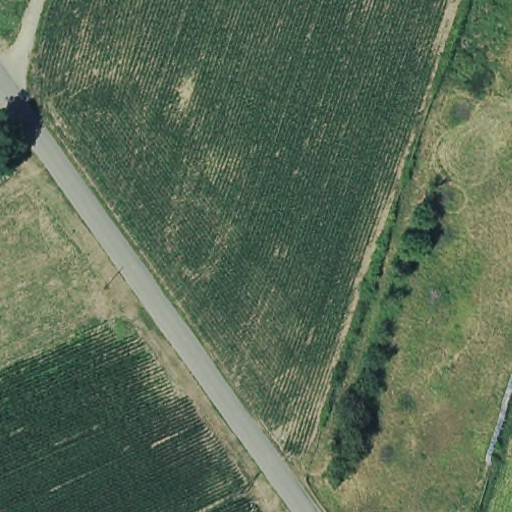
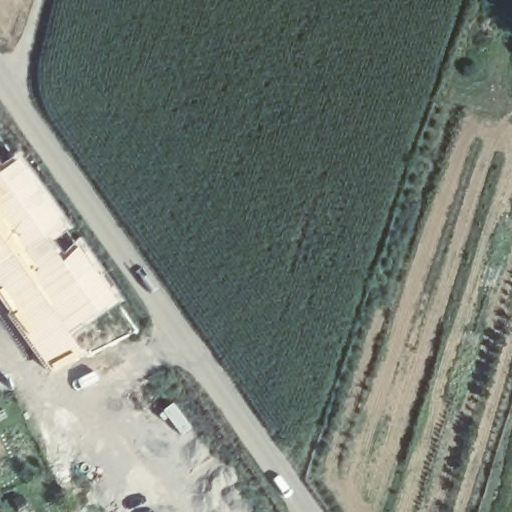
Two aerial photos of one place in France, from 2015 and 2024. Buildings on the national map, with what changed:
new [(14,145),(70,225),(49,239),(62,252),(80,240),(124,295),(69,335),(85,355),(58,373),(0,293),(0,155),(14,145)]

